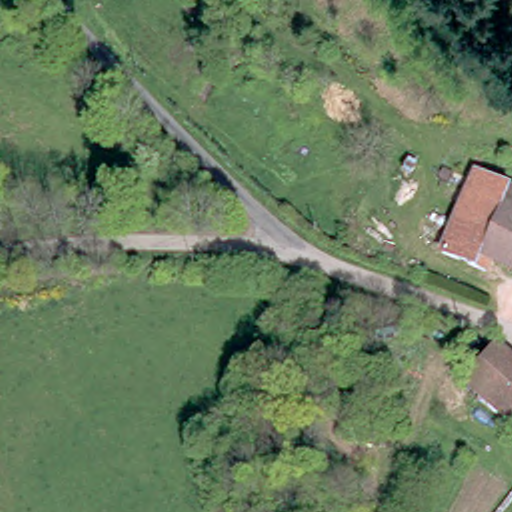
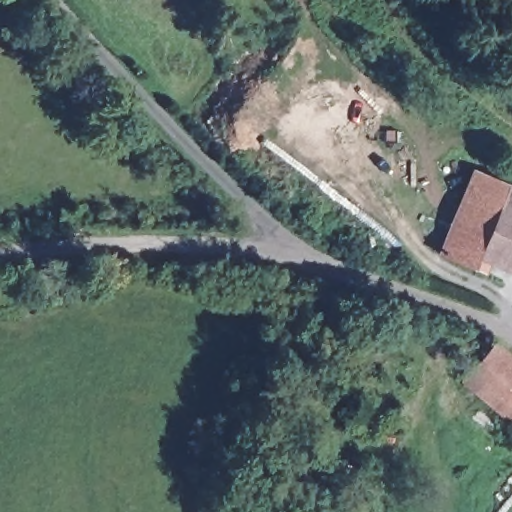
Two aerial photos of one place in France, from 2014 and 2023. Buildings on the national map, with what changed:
unchanged [(476,166),(507,181),(470,255),(439,240),(476,166)]
unchanged [(490,273),(467,262),(470,255),(507,181),(512,184),(512,270),(494,261),(490,273)]
unchanged [(456,378),(497,333),(512,349),(512,425),(456,378)]

